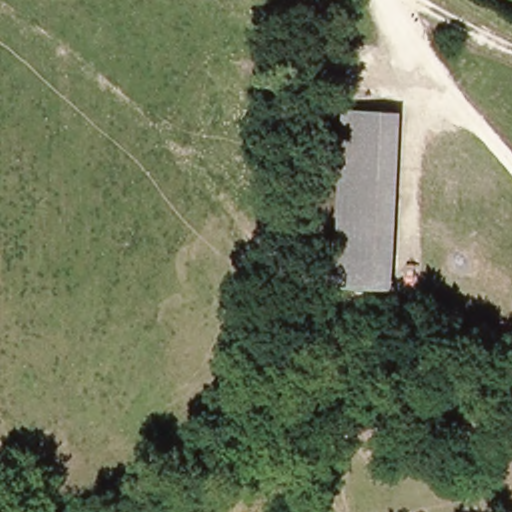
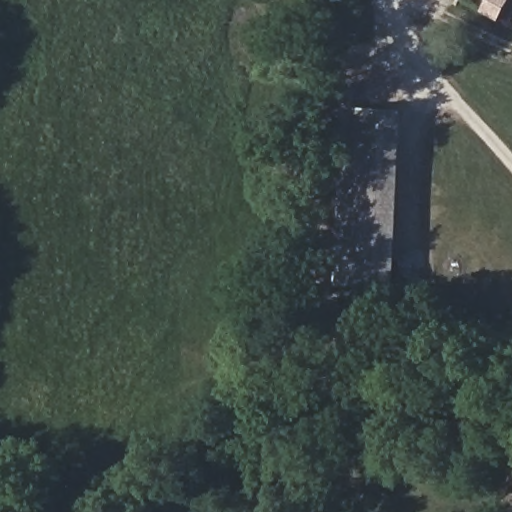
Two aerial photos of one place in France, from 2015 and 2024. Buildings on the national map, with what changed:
new [(499,21),(481,12),(488,0),(511,0),(499,21)]
unchanged [(343,116),(386,117),(381,259),(338,257),(343,116)]
unchanged [(381,259),(379,295),(337,294),(338,257),(381,259)]

